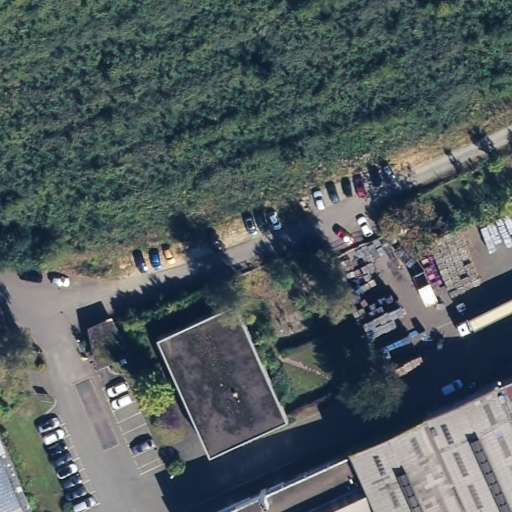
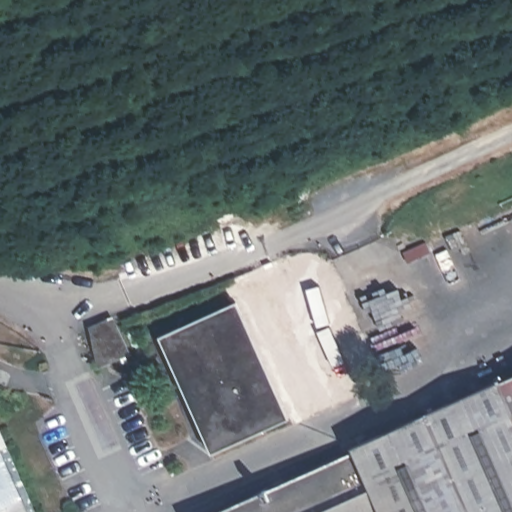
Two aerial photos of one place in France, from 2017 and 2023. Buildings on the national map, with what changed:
unchanged [(206,433),(162,337),(241,302),(294,419),(222,451),(215,454),(206,433)]
unchanged [(124,357),(112,363),(106,351),(99,354),(94,334),(110,327),(124,357)]
unchanged [(358,452),(356,447),(512,376),(512,512),(221,512),(358,452)]
unchanged [(0,440),(32,512),(0,512),(0,440)]

